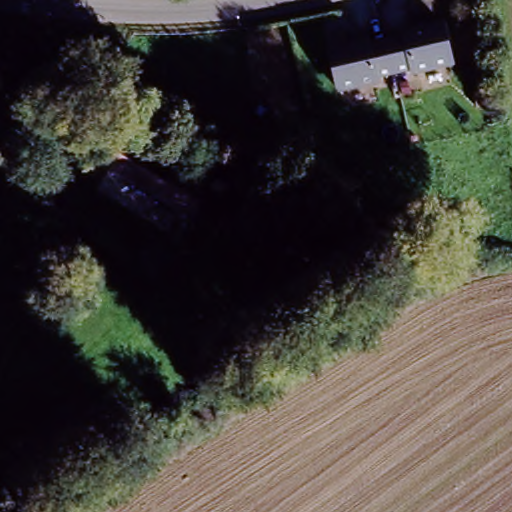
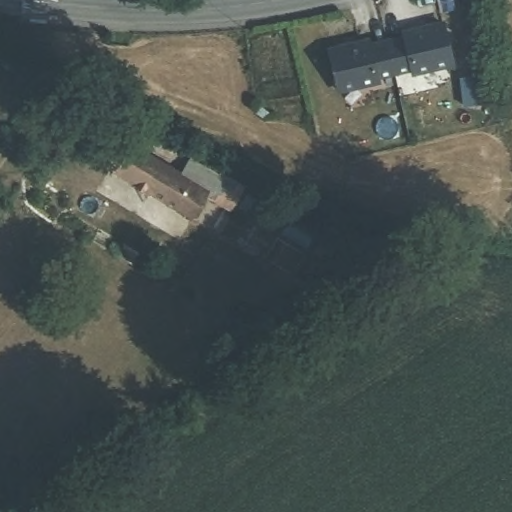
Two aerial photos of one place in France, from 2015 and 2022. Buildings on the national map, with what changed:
unchanged [(404,42),(403,38),(442,29),(452,69),(412,77),(412,73),(393,77),(387,46),(404,42)]
unchanged [(393,77),(377,81),(377,85),(338,95),(329,55),(368,46),(369,50),(372,50),(387,46),(393,77)]
unchanged [(110,170),(104,165),(120,139),(126,142),(181,175),(190,161),(217,176),(192,218),(110,170)]

